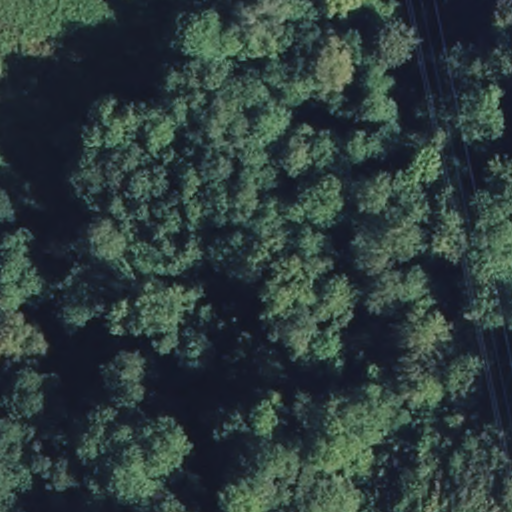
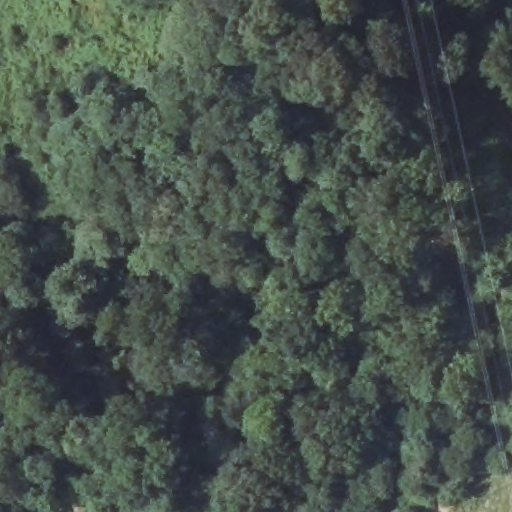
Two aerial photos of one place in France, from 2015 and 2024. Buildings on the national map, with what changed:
unchanged [(512,245),(512,265),(506,276),(490,266),(475,257),(490,232),(512,245)]

